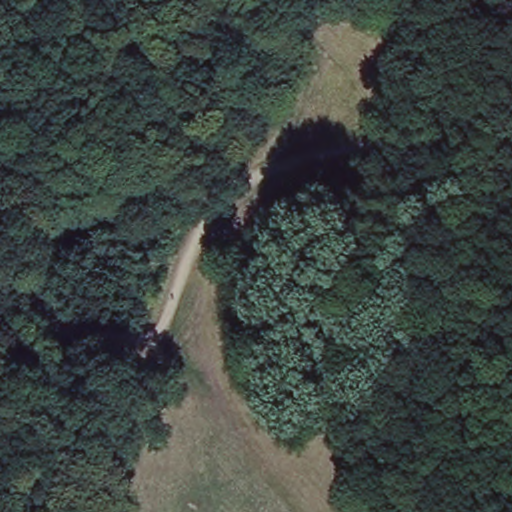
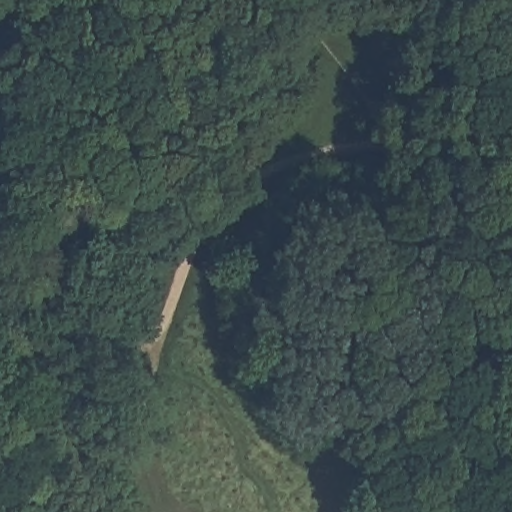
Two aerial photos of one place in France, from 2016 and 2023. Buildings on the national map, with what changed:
[]

